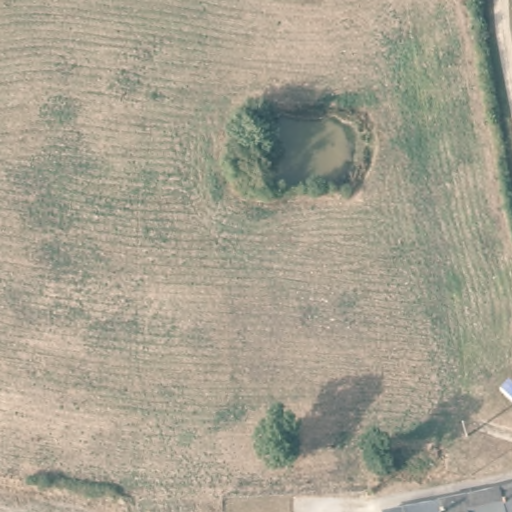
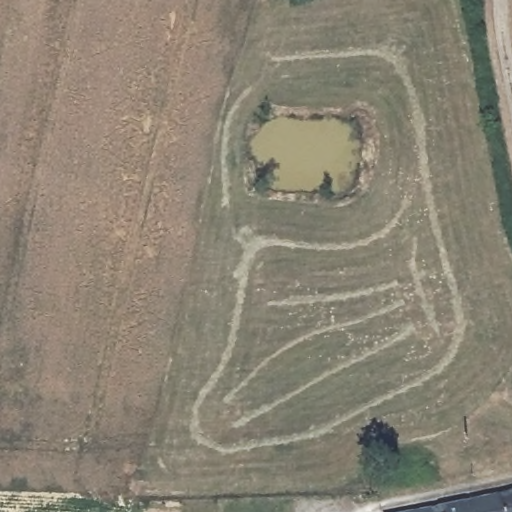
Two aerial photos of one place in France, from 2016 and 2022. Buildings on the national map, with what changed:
unchanged [(473,512),(468,491),(512,482),(512,512),(473,512)]
unchanged [(473,512),(385,512),(384,509),(468,491),(473,512)]

